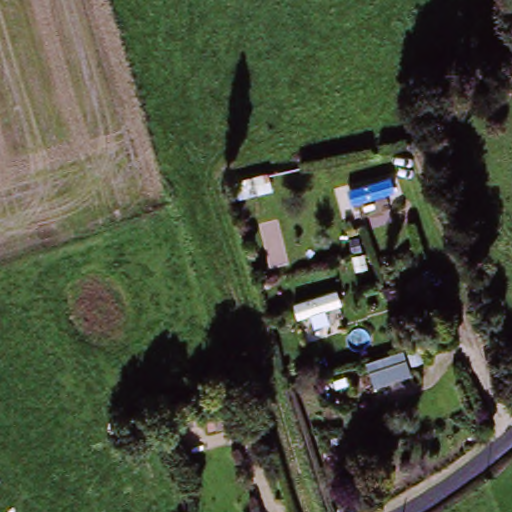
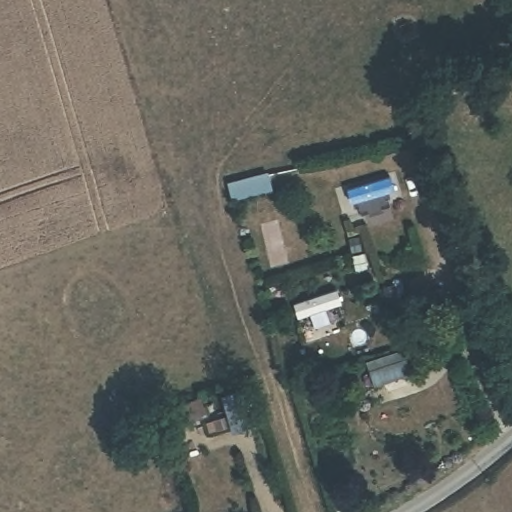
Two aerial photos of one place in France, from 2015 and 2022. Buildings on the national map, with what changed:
unchanged [(410,354),(421,385),(372,395),(364,369),(410,354)]
unchanged [(194,399),(200,418),(166,427),(161,408),(194,399)]

